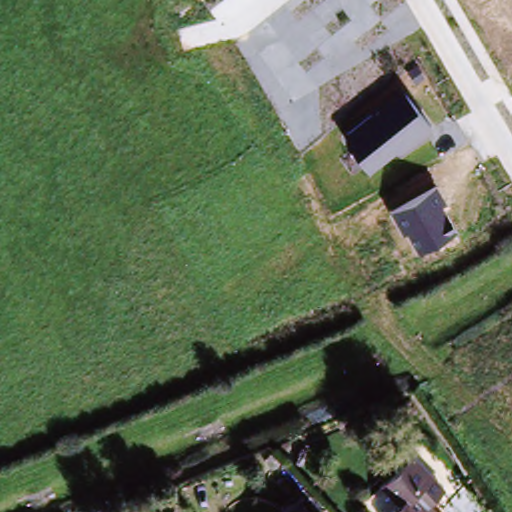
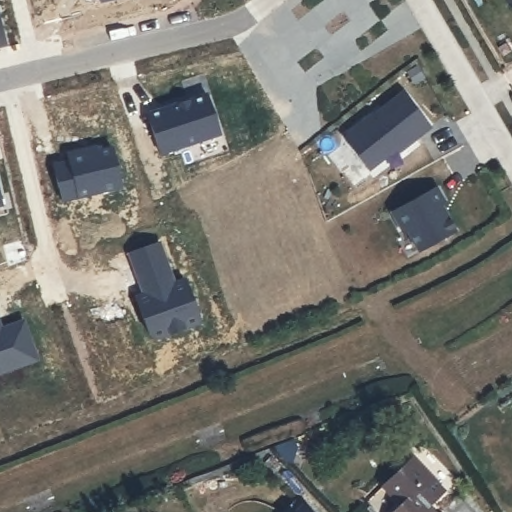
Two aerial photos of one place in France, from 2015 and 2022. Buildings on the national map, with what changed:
unchanged [(343,137),(404,91),(430,123),(370,171),(343,137)]
new [(177,102),(177,104),(187,100),(187,99),(205,92),(219,132),(159,152),(146,112),(177,102)]
new [(68,159),(66,152),(84,147),(86,152),(95,150),(110,146),(120,185),(61,199),(52,163),(68,159)]
unchanged [(408,233),(404,234),(392,212),(436,185),(447,201),(441,206),(457,231),(420,254),(408,233)]
new [(157,240),(173,281),(184,277),(199,320),(156,336),(148,332),(134,295),(145,292),(141,281),(139,282),(127,251),(157,240)]
new [(22,318),(36,357),(0,370),(0,326),(22,318)]
unchanged [(409,463),(440,496),(424,511),(424,512),(370,512),(364,506),(409,463)]
unchanged [(480,512),(446,512),(464,495),(480,512)]
unchanged [(292,512),(294,510),(296,512),(292,512)]

